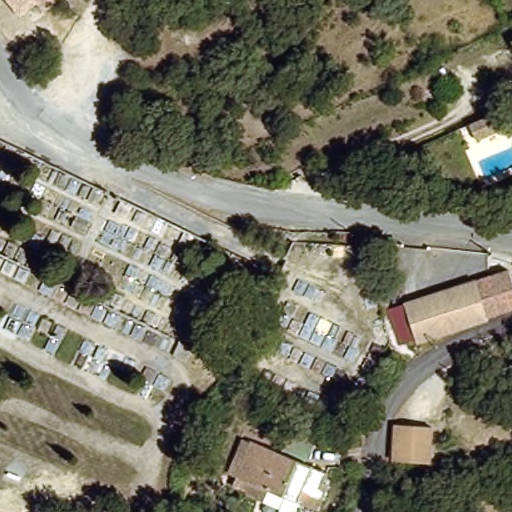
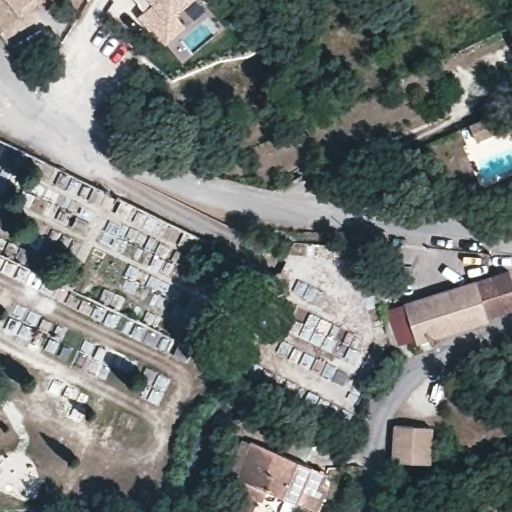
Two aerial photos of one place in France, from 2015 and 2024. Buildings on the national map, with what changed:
unchanged [(45,12),(39,4),(22,17),(8,0),(60,0),(45,12)]
new [(175,10),(185,19),(166,40),(151,26),(149,26),(135,13),(142,5),(137,0),(183,0),(175,10)]
unchanged [(500,110),(502,109),(508,126),(479,138),(472,122),(500,110)]
unchanged [(511,267),(512,271),(512,310),(488,317),(475,277),(511,267)]
unchanged [(397,301),(475,277),(490,323),(413,347),(397,301)]
unchanged [(387,430),(426,426),(429,462),(392,467),(387,430)]
unchanged [(306,507),(298,502),(228,467),(245,431),(305,459),(317,466),(312,477),(320,481),(306,507)]

